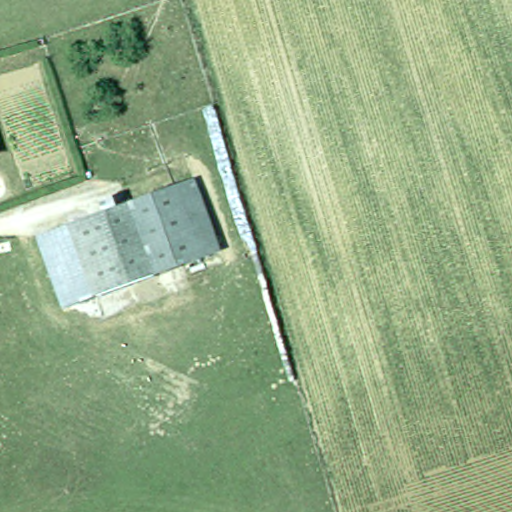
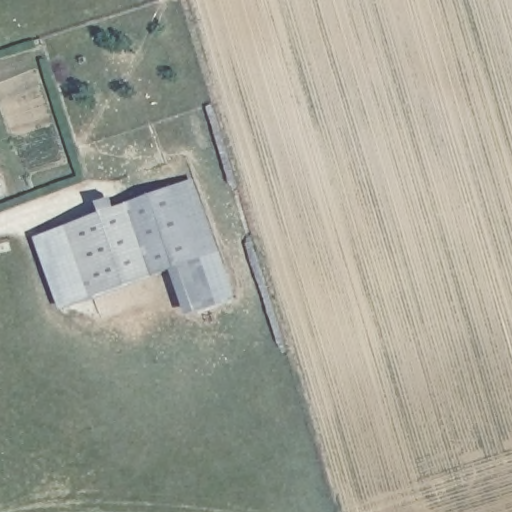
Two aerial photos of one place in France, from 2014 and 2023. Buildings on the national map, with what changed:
unchanged [(193,179),(220,250),(202,257),(175,185),(193,179)]
unchanged [(65,307),(40,235),(175,185),(202,257),(65,307)]
new [(172,267),(192,260),(202,257),(220,250),(237,297),(188,316),(172,267)]

